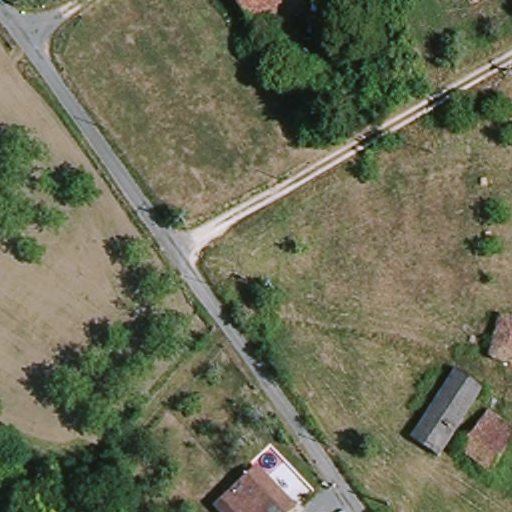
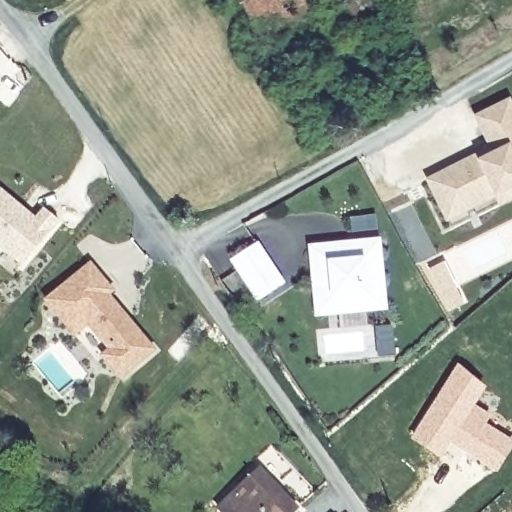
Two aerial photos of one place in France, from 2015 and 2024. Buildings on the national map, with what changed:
unchanged [(260,39),(237,0),(302,0),(307,9),(260,39)]
unchanged [(335,10),(331,0),(355,0),(355,1),(335,10)]
unchanged [(296,31),(313,56),(296,70),(277,44),(296,31)]
new [(425,183),(472,160),(489,151),(473,120),(505,103),(512,116),(512,200),(498,207),(493,198),(467,211),(445,222),(425,183)]
new [(35,217),(41,210),(58,224),(25,265),(0,244),(0,188),(35,217)]
new [(309,247),(382,240),(388,312),(315,320),(309,247)]
new [(230,262),(258,244),(285,282),(256,304),(230,262)]
new [(106,298),(117,311),(125,319),(152,353),(118,381),(92,350),(100,344),(78,317),(65,328),(55,316),(44,303),(88,267),(99,280),(111,294),(106,298)]
demolished [(512,317),(512,363),(493,358),(503,315),(512,317)]
unchanged [(438,454),(411,437),(454,370),(480,388),(448,441),(438,454)]
unchanged [(461,451),(489,411),(512,428),(512,442),(490,471),(461,451)]
unchanged [(290,512),(231,512),(225,506),(256,474),(290,512)]

